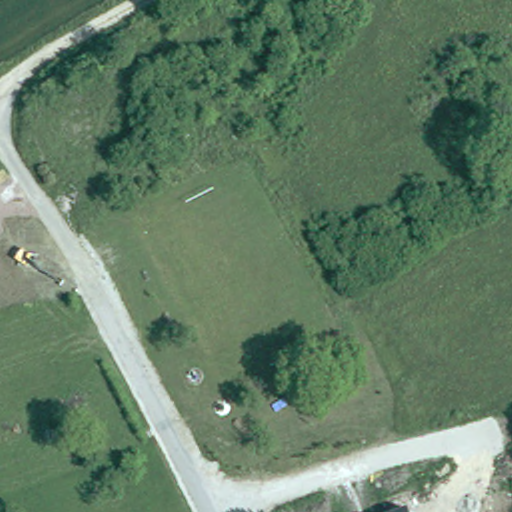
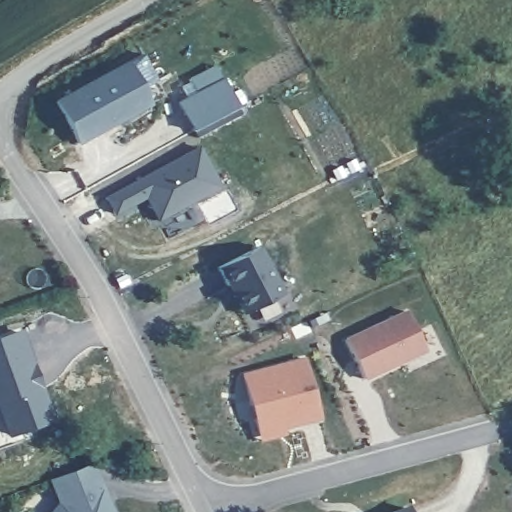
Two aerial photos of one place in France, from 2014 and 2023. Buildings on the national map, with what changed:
new [(150,104),(78,145),(52,100),(125,60),(150,104)]
new [(237,106),(193,130),(178,101),(222,79),(237,106)]
new [(218,187),(158,219),(147,197),(116,215),(105,197),(197,147),(218,187)]
new [(284,293),(242,315),(216,266),(259,244),(284,293)]
new [(426,352),(365,381),(344,337),(405,308),(426,352)]
new [(20,332),(51,420),(11,435),(0,405),(0,340),(20,332)]
new [(303,357),(319,418),(284,427),(285,434),(259,441),(241,372),(303,357)]
new [(112,512),(49,512),(56,503),(49,478),(94,462),(112,512)]
unchanged [(409,512),(389,512),(407,505),(409,512)]

